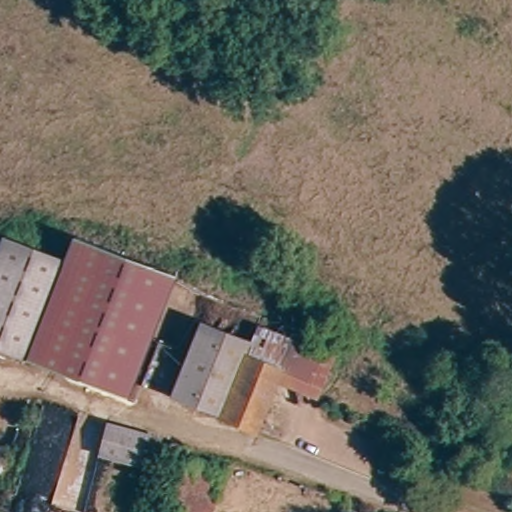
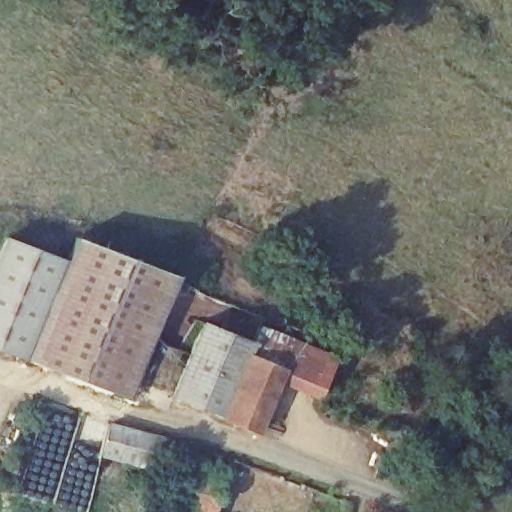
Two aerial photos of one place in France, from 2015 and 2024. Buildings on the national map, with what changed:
unchanged [(19,353),(0,344),(0,244),(8,228),(64,256),(19,353)]
unchanged [(64,256),(74,233),(167,276),(175,280),(120,400),(106,394),(19,353),(64,256)]
unchanged [(240,351),(246,336),(252,319),(334,341),(322,378),(282,365),(245,353),(240,351)]
unchanged [(169,401),(196,321),(246,336),(240,351),(245,353),(225,419),(169,401)]
unchanged [(245,353),(282,365),(261,431),(225,419),(245,353)]
unchanged [(92,448),(104,416),(159,434),(149,466),(92,448)]
unchanged [(164,505),(174,455),(169,454),(172,438),(188,444),(185,456),(223,465),(213,512),(186,512),(187,510),(164,505)]

